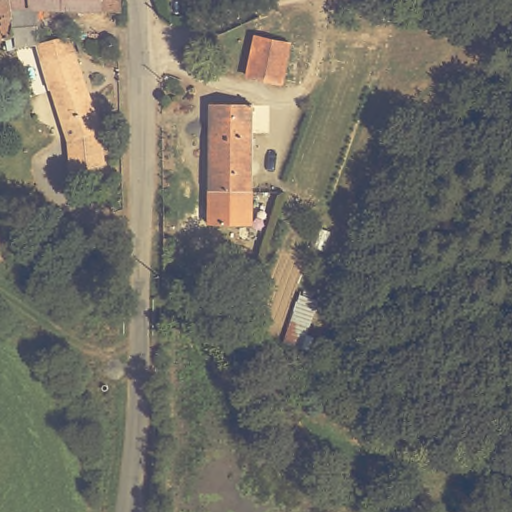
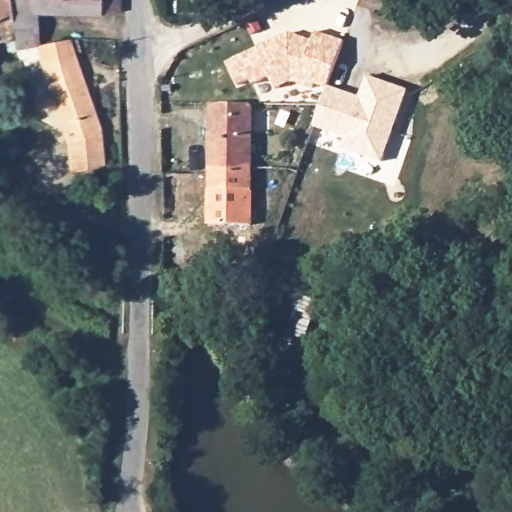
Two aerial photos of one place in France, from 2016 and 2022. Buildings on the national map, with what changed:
unchanged [(14,29),(0,32),(0,0),(12,0),(14,29)]
unchanged [(57,16),(44,17),(42,6),(37,7),(40,41),(15,42),(14,29),(12,0),(57,0),(57,16)]
unchanged [(90,20),(90,8),(70,8),(70,16),(57,16),(57,0),(118,0),(117,20),(90,20)]
new [(326,90),(313,85),(312,90),(298,87),(295,82),(277,90),(270,78),(255,87),(251,80),(237,87),(227,63),(290,33),(312,41),(315,31),(345,41),(328,86),(360,97),(367,75),(409,90),(383,164),(341,150),(346,139),(314,128),(326,90)]
unchanged [(83,55),(77,58),(98,117),(101,160),(72,168),(69,148),(60,148),(60,137),(67,135),(54,86),(49,85),(40,41),(55,35),(58,33),(74,33),(83,55)]
demolished [(249,57),(255,58),(258,37),(305,44),(298,85),(245,78),(249,57)]
unchanged [(214,106),(252,107),(250,191),(211,190),(214,106)]
unchanged [(254,225),(207,226),(208,190),(211,190),(250,191),(254,191),(254,225)]

